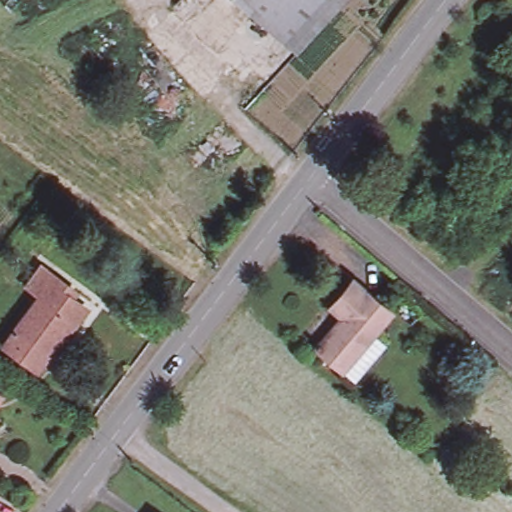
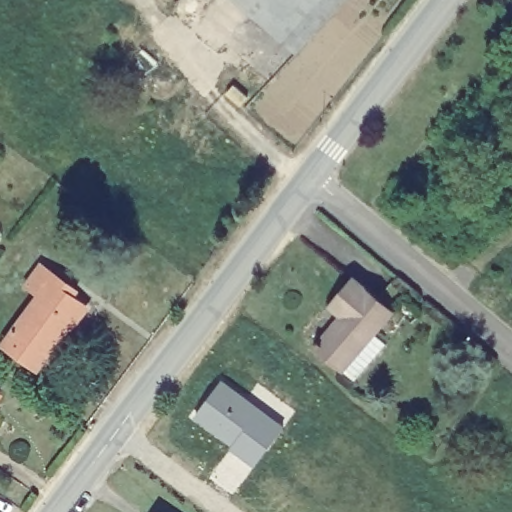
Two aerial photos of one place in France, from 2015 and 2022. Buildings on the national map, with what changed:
unchanged [(240,0),(349,0),(300,55),(240,0)]
new [(235,88),(250,100),(242,108),(228,96),(235,88)]
unchanged [(37,293),(24,282),(39,263),(65,282),(61,289),(81,304),(35,367),(0,342),(37,293)]
unchanged [(340,371),(312,346),(337,317),(326,308),(350,280),(388,314),(373,331),(385,342),(378,351),(352,382),(340,371)]
new [(223,384),(285,430),(257,467),(242,456),(245,454),(197,418),(223,384)]

